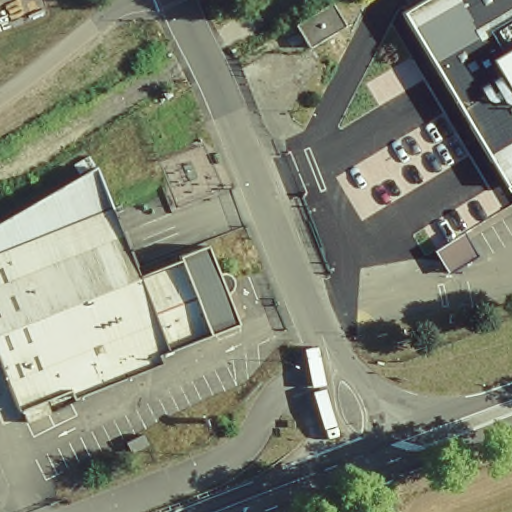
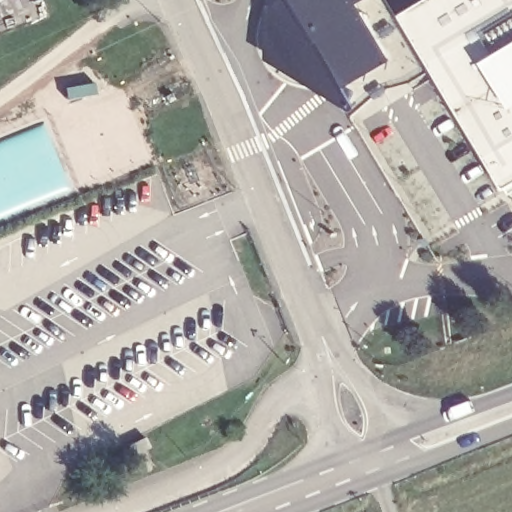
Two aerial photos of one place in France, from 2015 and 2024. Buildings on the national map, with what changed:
new [(376,0),(381,9),(371,17),(408,73),(364,97),(369,106),(366,107),(274,57),(274,6),(285,0),(376,0)]
unchanged [(512,0),(512,170),(502,176),(437,62),(403,3),(408,0),(512,0)]
unchanged [(422,71),(394,21),(403,3),(437,62),(422,71)]
demolished [(338,11),(349,32),(311,51),(301,29),(338,11)]
demolished [(102,154),(123,196),(113,202),(141,262),(210,232),(246,311),(168,347),(169,353),(73,394),(65,378),(28,402),(0,340),(0,215),(102,154)]

